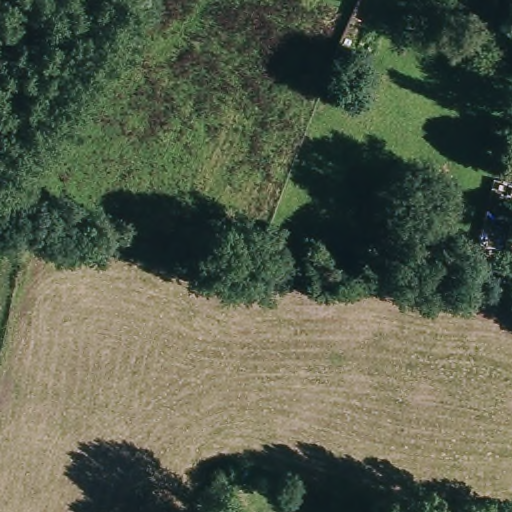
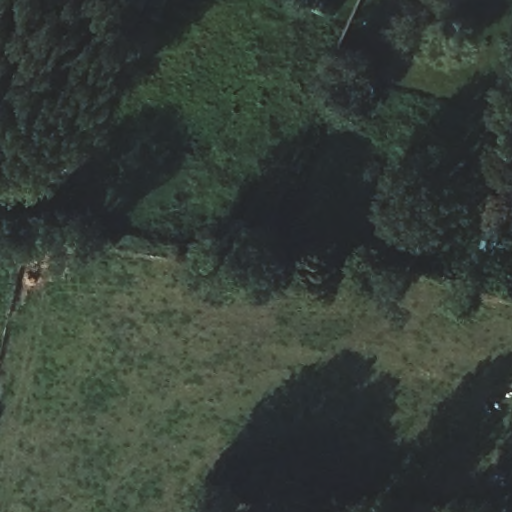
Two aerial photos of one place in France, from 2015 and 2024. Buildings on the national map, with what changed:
unchanged [(338,44),(370,56),(364,71),(332,58),(338,44)]

